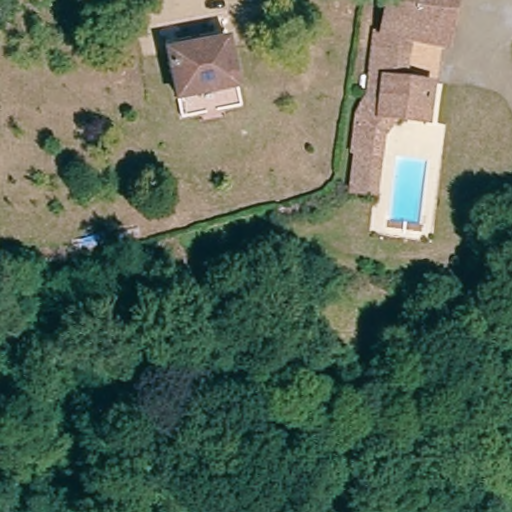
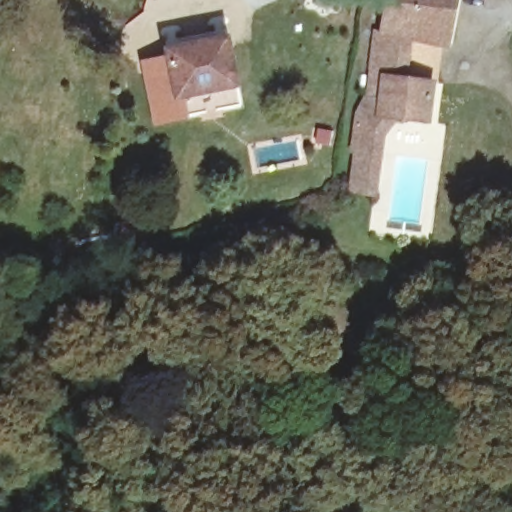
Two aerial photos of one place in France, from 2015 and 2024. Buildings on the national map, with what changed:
unchanged [(366,39),(384,40),(391,0),(458,0),(449,49),(412,45),(408,84),(437,86),(434,124),(387,121),(382,195),(382,198),(355,197),(357,143),(359,116),(366,39)]
unchanged [(234,85),(180,96),(170,50),(225,40),(234,85)]
new [(189,120),(153,126),(140,61),(171,55),(180,96),(184,96),(189,120)]

